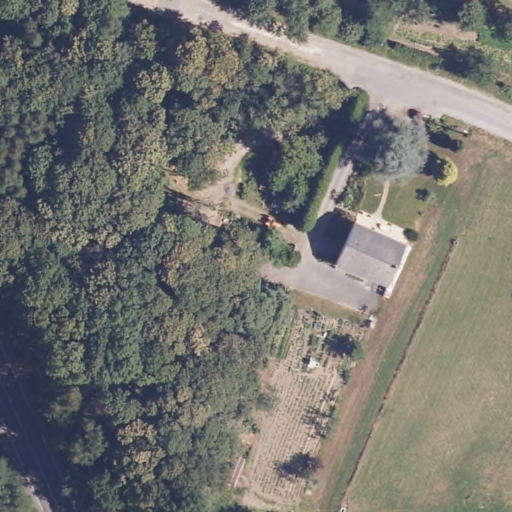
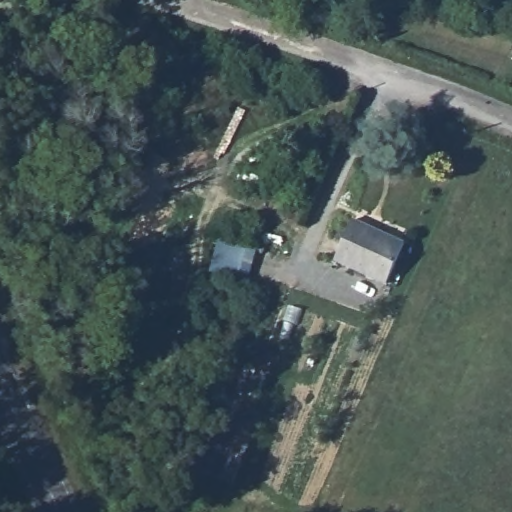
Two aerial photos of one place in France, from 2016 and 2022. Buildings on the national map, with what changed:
unchanged [(385,285),(329,265),(351,218),(402,240),(385,285)]
new [(220,237),(257,250),(247,282),(209,270),(220,237)]

